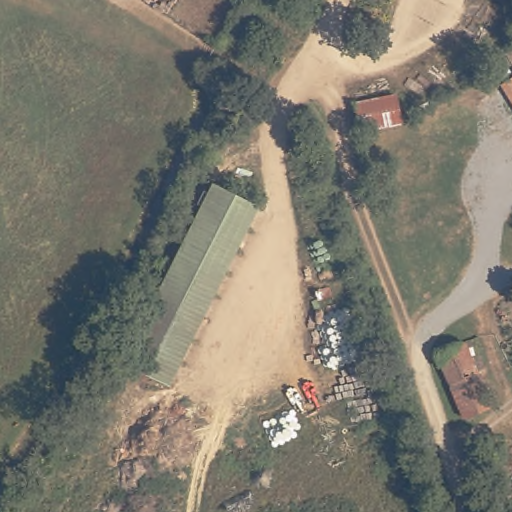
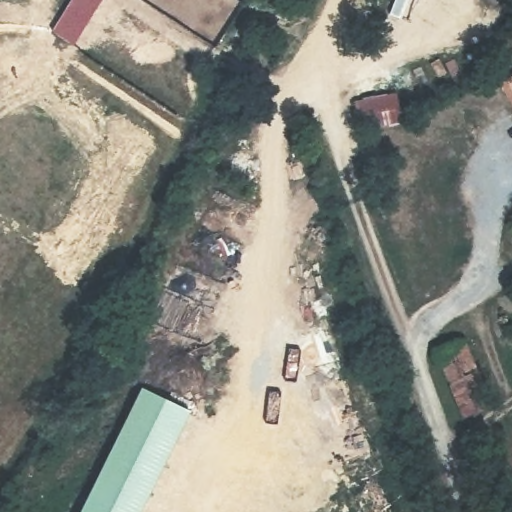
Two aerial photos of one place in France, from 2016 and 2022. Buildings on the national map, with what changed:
new [(52,31),(71,0),(102,0),(74,45),(52,31)]
unchanged [(510,68),(512,66),(512,105),(503,109),(498,97),(492,100),(487,86),(512,74),(510,68)]
unchanged [(357,98),(397,86),(403,120),(363,129),(357,103),(357,98)]
unchanged [(258,205),(167,381),(119,354),(162,275),(177,244),(211,180),(258,205)]
unchanged [(462,330),(497,412),(465,425),(437,340),(462,330)]
new [(142,512),(82,512),(144,388),(191,413),(142,512)]

